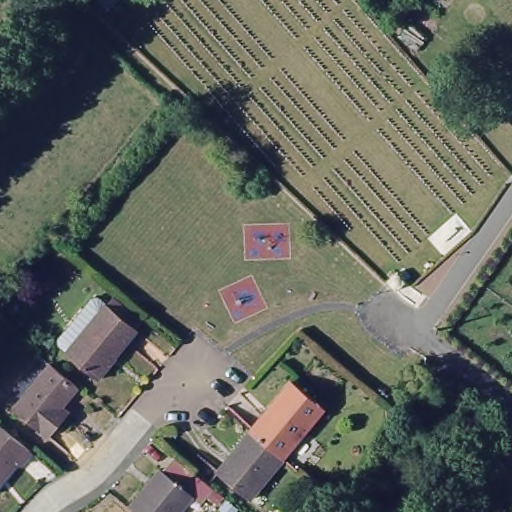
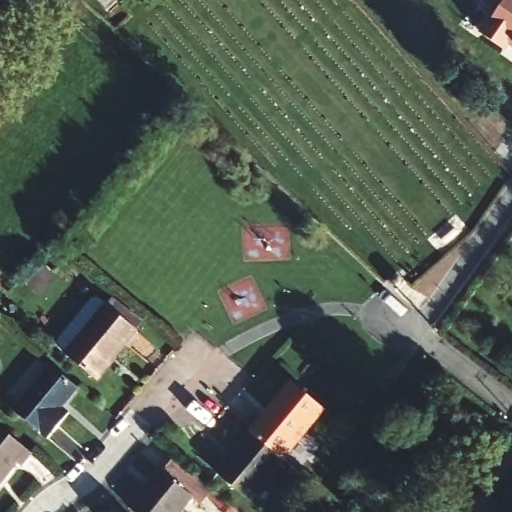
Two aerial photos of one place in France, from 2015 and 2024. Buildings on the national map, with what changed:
unchanged [(119,0),(107,12),(97,3),(100,0),(119,0)]
new [(505,51),(481,33),(498,8),(487,0),(512,0),(512,50),(508,47),(505,51)]
unchanged [(400,263),(407,272),(396,283),(389,275),(400,263)]
unchanged [(106,379),(75,355),(75,353),(67,346),(67,340),(102,296),(107,296),(115,303),(121,297),(151,321),(146,327),(148,329),(106,379)]
unchanged [(49,367),(77,388),(63,406),(69,412),(47,438),(13,410),(49,367)]
unchanged [(290,382),(322,408),(281,457),(250,431),(290,382)]
unchanged [(32,455),(20,468),(15,464),(0,482),(0,429),(32,455)]
unchanged [(250,431),(281,457),(283,460),(247,501),(215,473),(250,431)]
unchanged [(157,467),(159,469),(171,455),(210,487),(197,501),(190,494),(175,512),(131,512),(125,506),(157,467)]

